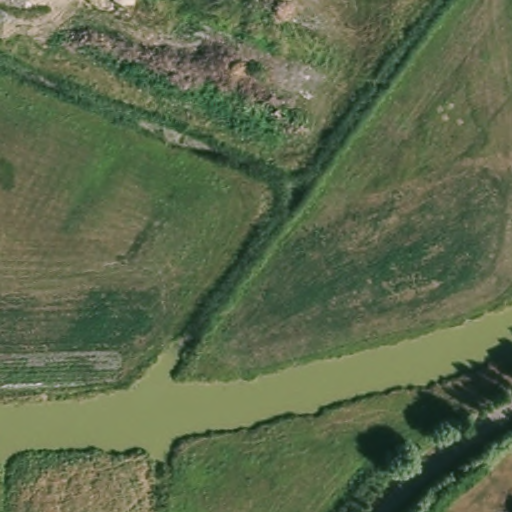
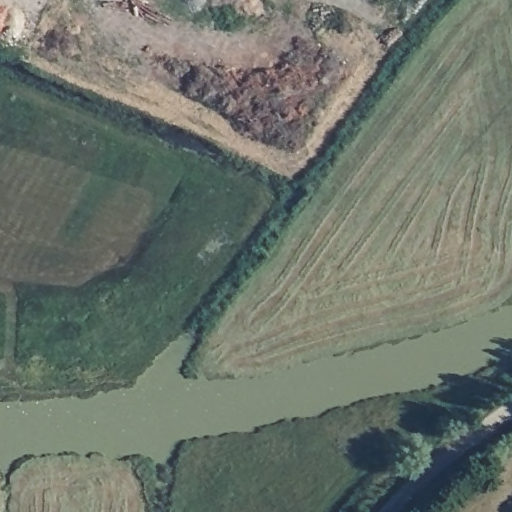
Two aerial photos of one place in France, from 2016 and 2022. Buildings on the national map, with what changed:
[]

